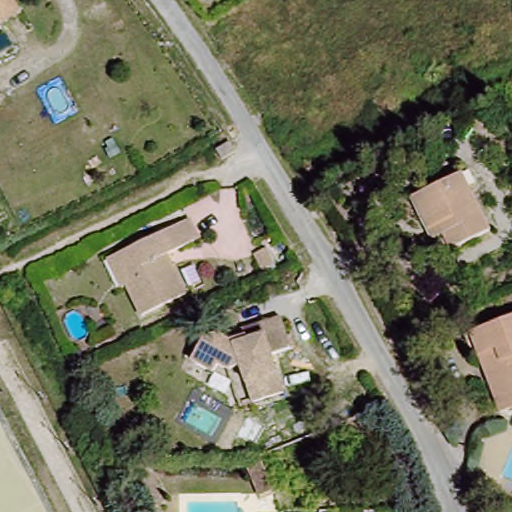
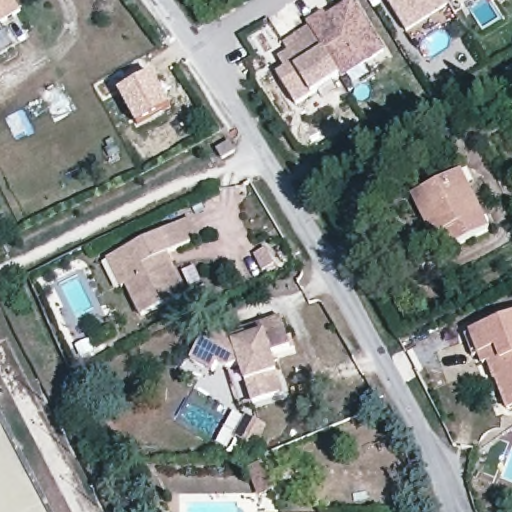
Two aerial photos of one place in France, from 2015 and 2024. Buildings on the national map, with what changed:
unchanged [(0,26),(0,0),(11,0),(20,16),(0,26)]
new [(341,80),(340,78),(313,95),(295,106),(276,75),(286,68),(278,57),(300,43),(295,35),(310,28),(306,24),(325,13),(328,17),(352,0),(353,0),(386,53),(341,80)]
new [(449,6),(406,32),(387,0),(445,0),(449,6)]
new [(136,126),(118,92),(151,74),(170,107),(136,126)]
unchanged [(231,137),(236,149),(223,155),(218,144),(231,137)]
unchanged [(410,198),(422,190),(456,169),(486,218),(451,238),(442,223),(426,233),(410,198)]
unchanged [(108,258),(117,254),(188,218),(198,240),(166,256),(186,294),(141,317),(125,286),(121,288),(108,258)]
unchanged [(269,255),(278,270),(266,276),(258,261),(269,255)]
unchanged [(216,342),(226,347),(243,339),(245,343),(261,336),(256,324),(276,315),(291,346),(271,355),(288,391),(259,406),(241,370),(228,376),(218,372),(215,381),(193,372),(203,348),(216,342)]
unchanged [(510,412),(496,378),(507,375),(503,362),(492,365),(487,353),(473,358),(466,335),(512,319),(512,411),(510,412)]
unchanged [(276,466),(276,483),(265,482),(265,466),(276,466)]

